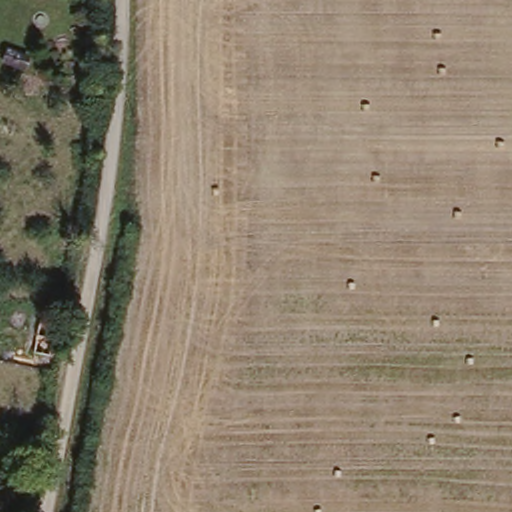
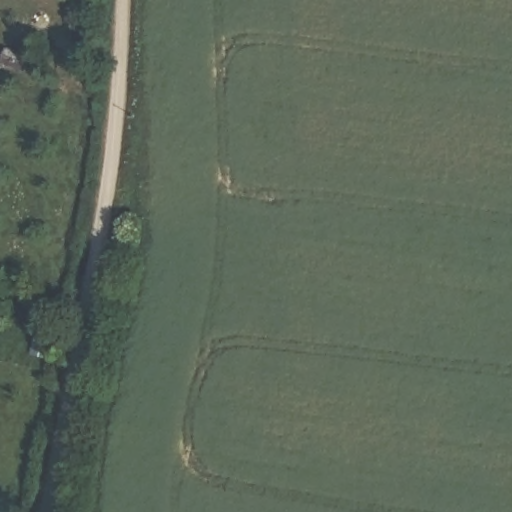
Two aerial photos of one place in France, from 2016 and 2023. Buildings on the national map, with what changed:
unchanged [(32,55),(26,72),(0,64),(5,46),(32,55)]
unchanged [(64,323),(59,357),(34,352),(39,318),(64,323)]

